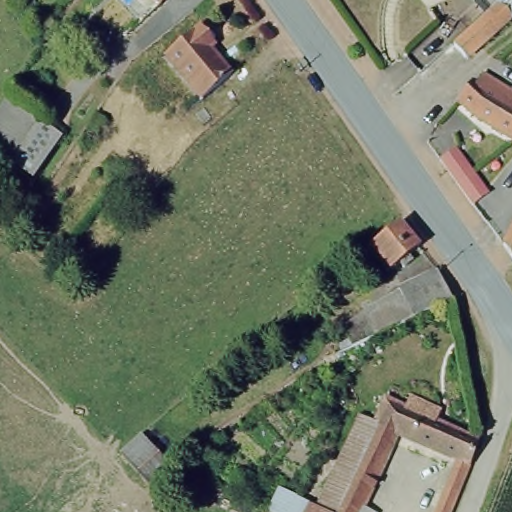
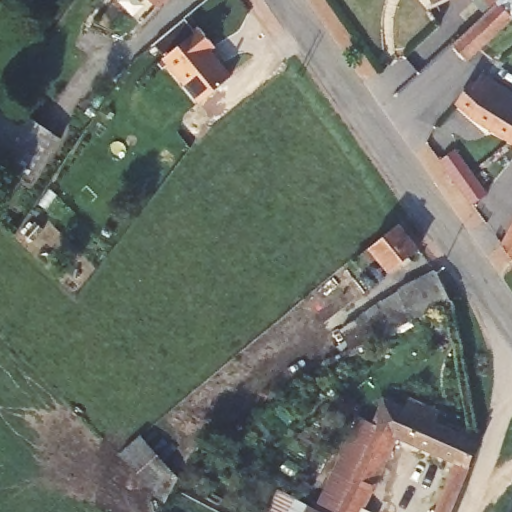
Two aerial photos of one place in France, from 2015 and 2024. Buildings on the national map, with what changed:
unchanged [(494,0),(507,0),(512,5),(512,13),(472,45),(465,37),(459,29),(494,0)]
unchanged [(198,25),(214,42),(208,47),(231,73),(202,97),(165,55),(198,25)]
unchanged [(472,86),(480,74),(512,96),(512,142),(460,103),(472,86)]
unchanged [(34,118),(5,160),(0,157),(0,104),(4,98),(34,118)]
unchanged [(452,143),(482,186),(464,200),(437,164),(434,157),(452,143)]
unchanged [(402,217),(418,241),(389,263),(378,248),(365,259),(359,252),(402,217)]
unchanged [(510,266),(504,251),(512,234),(512,271),(510,266)]
unchanged [(426,272),(429,278),(432,285),(435,300),(434,300),(401,319),(380,330),(378,331),(364,307),(426,272)]
unchanged [(364,307),(378,331),(343,351),(329,326),(364,307)]
unchanged [(365,428),(374,431),(377,425),(385,402),(399,407),(402,398),(430,408),(426,417),(440,422),(475,435),(471,446),(465,467),(450,460),(402,442),(363,512),(315,512),(318,506),(365,428)]
unchanged [(134,426),(173,470),(158,492),(112,442),(134,426)]
unchanged [(465,467),(457,486),(447,512),(429,512),(450,460),(465,467)]
unchanged [(318,506),(315,512),(262,512),(275,485),(318,506)]

